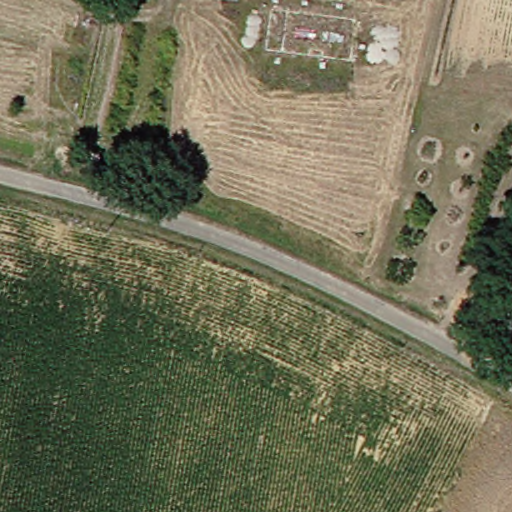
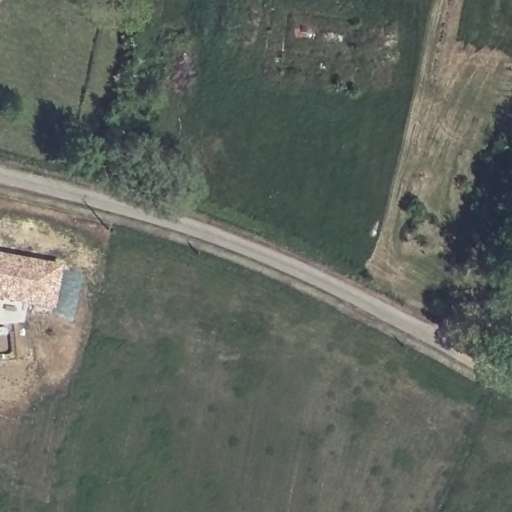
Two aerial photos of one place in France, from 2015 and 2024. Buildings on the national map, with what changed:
new [(55,310),(0,301),(0,253),(64,265),(55,310)]

